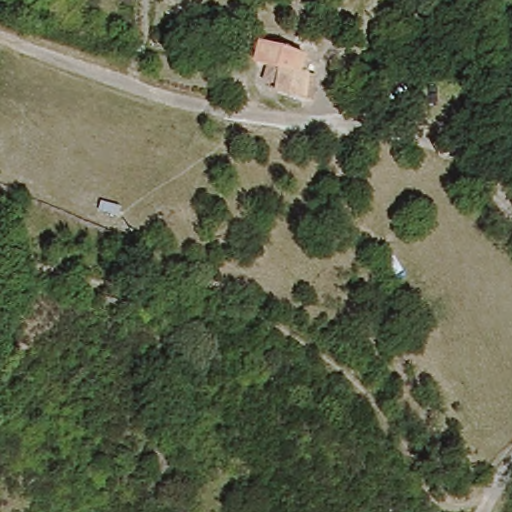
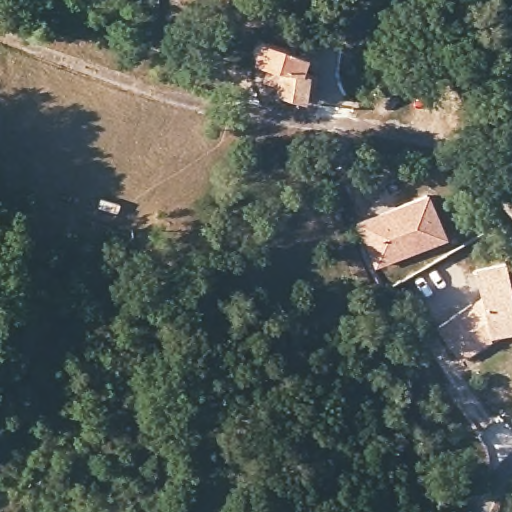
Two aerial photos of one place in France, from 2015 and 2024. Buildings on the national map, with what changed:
unchanged [(267,88),(273,66),(256,63),(259,43),(311,49),(311,68),(320,69),(312,101),(267,88)]
new [(392,205),(422,192),(440,234),(371,263),(354,221),(369,215),(392,205)]
new [(436,330),(482,298),(477,270),(506,262),(512,294),(512,332),(489,336),(491,341),(461,362),(436,330)]

